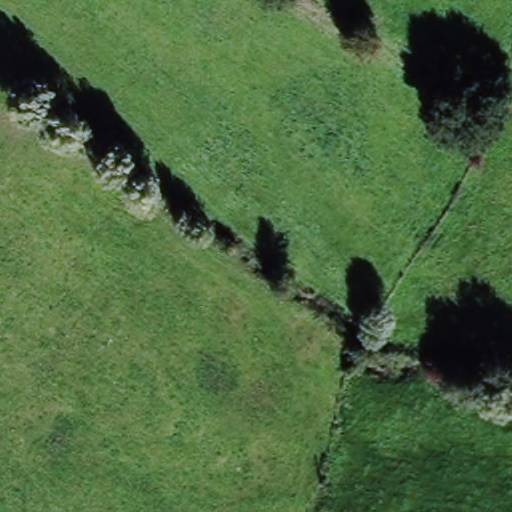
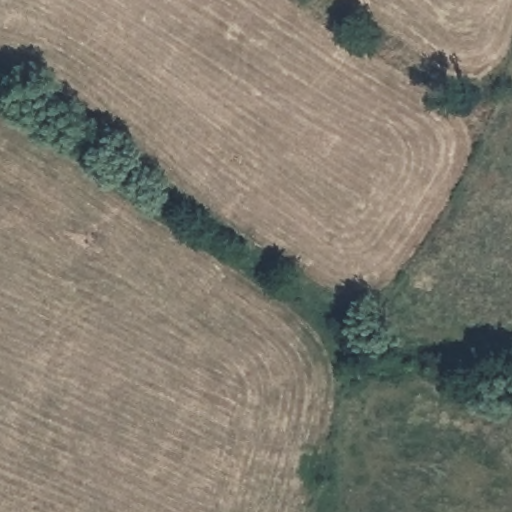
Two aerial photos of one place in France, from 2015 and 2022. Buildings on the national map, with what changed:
[]

